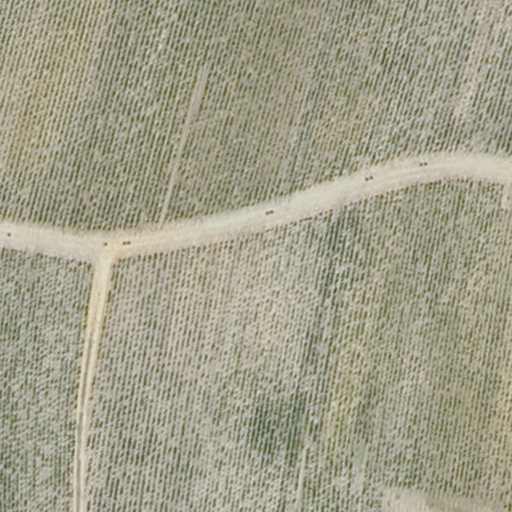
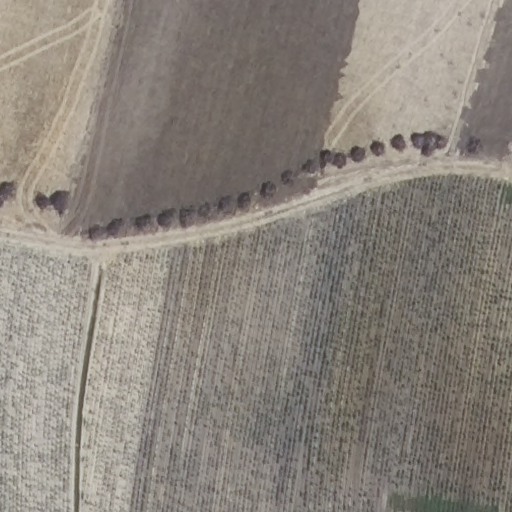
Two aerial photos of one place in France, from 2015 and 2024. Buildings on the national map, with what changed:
[]

